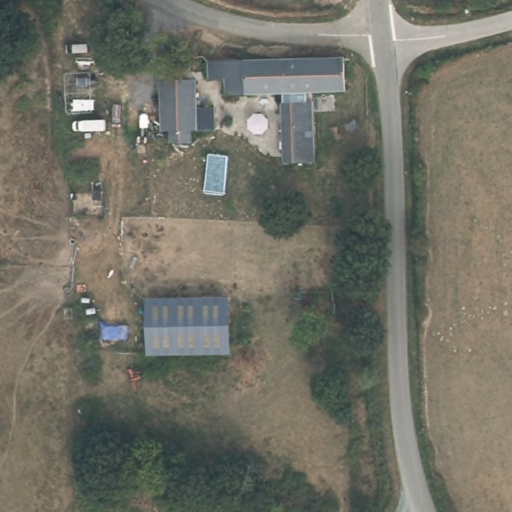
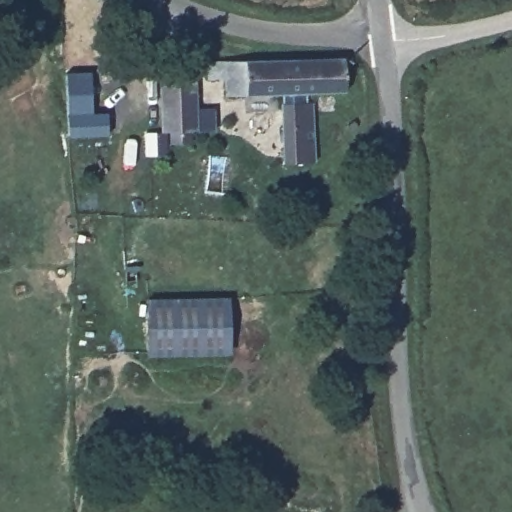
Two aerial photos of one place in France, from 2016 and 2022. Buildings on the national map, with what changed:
unchanged [(281,95),(227,94),(227,81),(211,81),(210,59),(344,58),(344,95),(306,94),(307,104),(313,104),(311,159),(311,165),(281,164),(281,160),(281,95)]
new [(65,71),(91,71),(91,111),(109,111),(110,134),(68,136),(65,71)]
unchanged [(193,78),(194,128),(160,128),(160,77),(193,78)]
unchanged [(230,303),(231,353),(151,355),(150,302),(230,303)]

